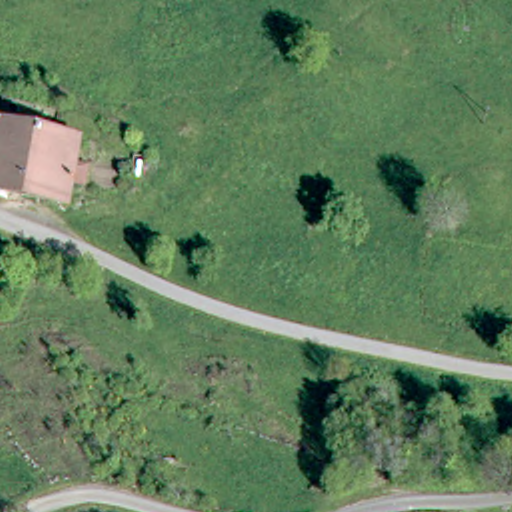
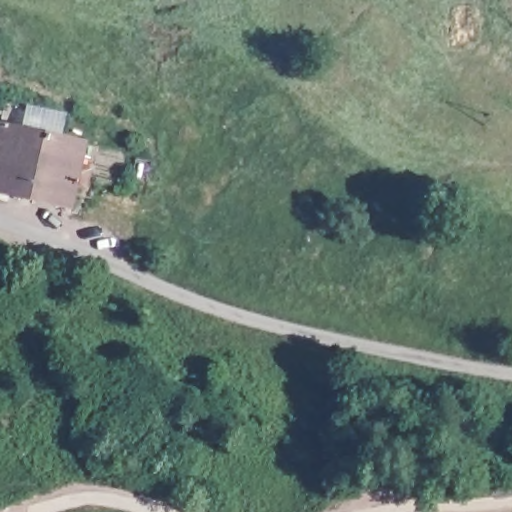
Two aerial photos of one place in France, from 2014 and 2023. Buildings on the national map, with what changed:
unchanged [(77,131),(62,200),(0,184),(0,114),(77,131)]

